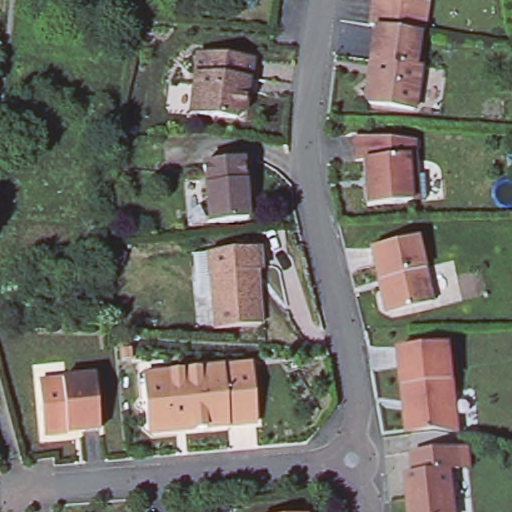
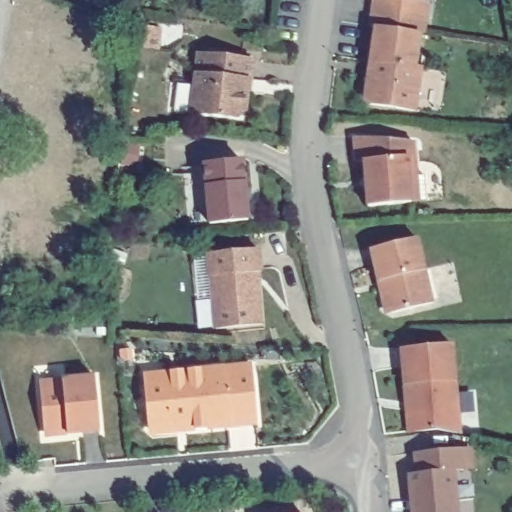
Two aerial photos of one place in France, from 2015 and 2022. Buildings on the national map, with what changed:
unchanged [(367,0),(421,0),(417,28),(412,28),(369,21),(364,20),(367,0)]
unchanged [(407,62),(418,64),(412,106),(362,99),(359,93),(369,21),(412,28),(407,62)]
unchanged [(194,90),(199,49),(252,56),(250,78),(248,78),(244,112),(236,118),(197,113),(191,112),(194,90)]
unchanged [(401,211),(357,208),(361,163),(352,162),(354,137),(413,142),(410,187),(408,212),(401,211)]
unchanged [(246,221),(207,224),(204,163),(242,161),(246,221)]
unchanged [(411,237),(426,303),(385,312),(379,308),(376,294),(380,288),(377,280),(372,281),(365,248),(411,237)]
unchanged [(257,250),(259,273),(252,274),(254,284),(256,286),(260,325),(214,330),(207,255),(257,250)]
unchanged [(405,413),(407,409),(407,402),(403,399),(399,347),(449,343),(457,432),(434,428),(406,431),(405,413)]
unchanged [(256,425),(189,430),(189,425),(171,426),(165,432),(152,433),(147,428),(144,385),(144,376),(164,374),(252,367),(256,425)]
unchanged [(98,434),(81,435),(81,431),(67,432),(62,437),(47,438),(42,432),(37,385),(94,380),(98,434)]
unchanged [(419,472),(417,451),(462,447),(464,468),(454,469),(457,512),(414,512),(411,472),(419,472)]
unchanged [(301,512),(295,512),(301,511),(301,512)]

